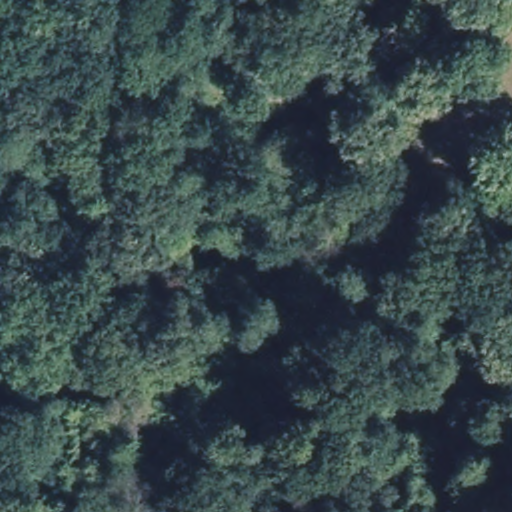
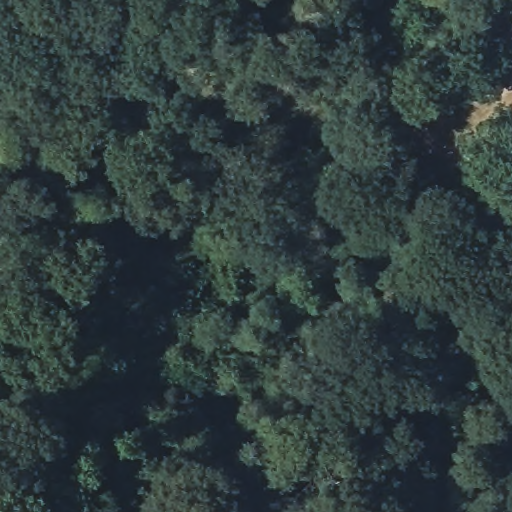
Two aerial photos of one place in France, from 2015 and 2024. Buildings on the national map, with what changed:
[]

